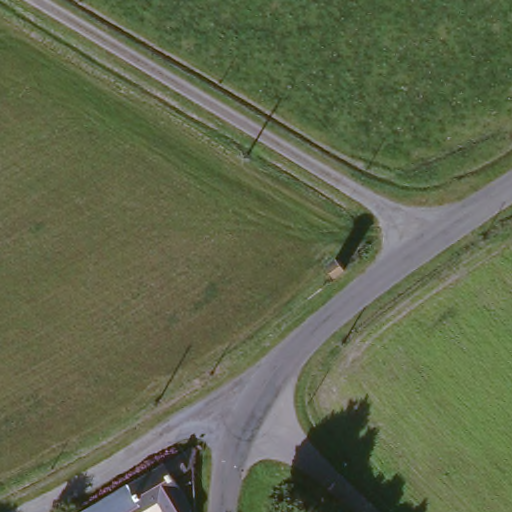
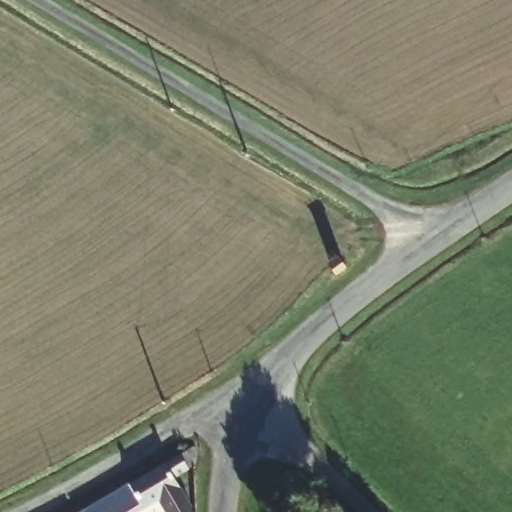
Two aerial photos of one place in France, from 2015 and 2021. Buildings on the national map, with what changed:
unchanged [(186,446),(185,467),(165,478),(168,488),(137,509),(133,505),(120,512),(78,512),(186,446)]
unchanged [(158,495),(168,488),(165,478),(175,472),(194,507),(193,512),(167,512),(158,495)]

